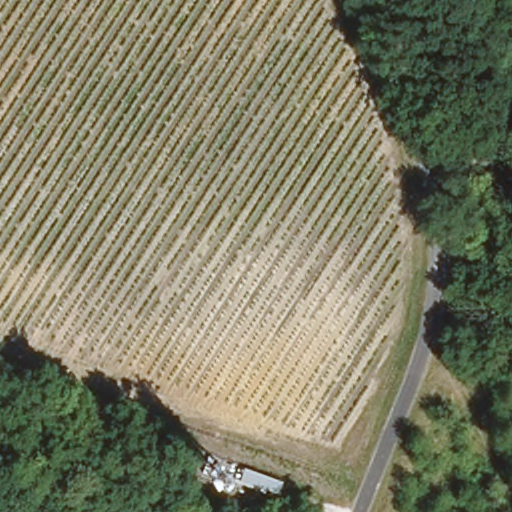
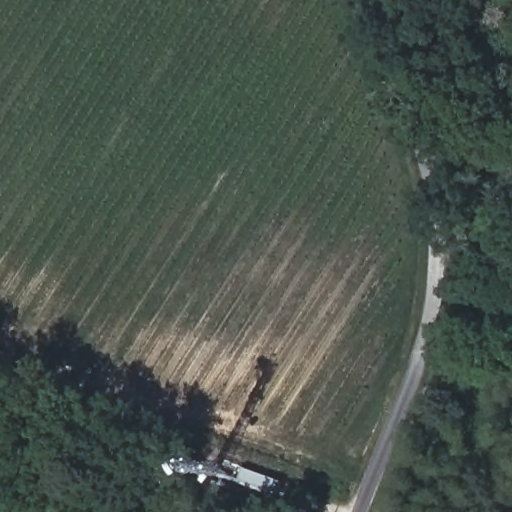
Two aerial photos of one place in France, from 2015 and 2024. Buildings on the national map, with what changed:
unchanged [(285,466),(246,452),(250,441),(289,455),(285,466)]

